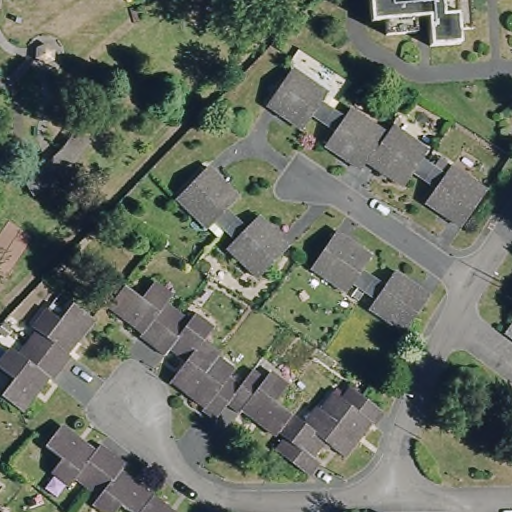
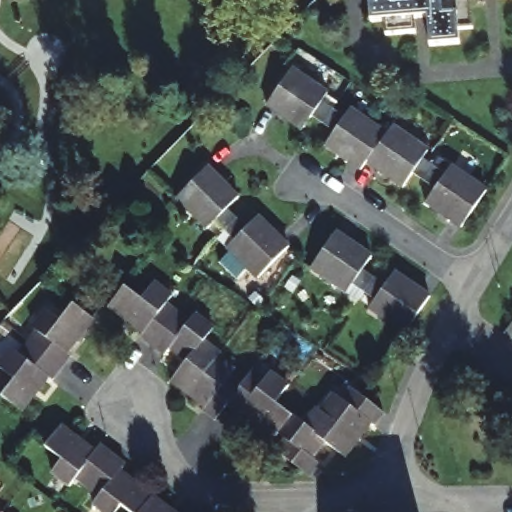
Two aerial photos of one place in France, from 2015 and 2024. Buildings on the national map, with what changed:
unchanged [(460,29),(461,44),(456,45),(430,47),(429,26),(428,19),(419,19),(415,20),(415,34),(385,36),(385,22),(371,23),(369,0),(470,0),(472,29),(460,29)]
unchanged [(327,125),(315,117),(305,131),(270,107),(295,69),(330,94),(324,104),(336,112),(327,125)]
unchanged [(336,112),(348,120),(355,111),(389,135),(365,172),(330,148),(340,133),(327,125),(336,112)]
unchanged [(429,182),(418,174),(407,189),(372,164),(397,127),(432,152),(425,162),(437,170),(429,182)]
unchanged [(228,231),(220,222),(212,230),(180,199),(211,167),(242,198),(230,210),(240,219),(228,231)]
unchanged [(437,170),(449,177),(455,168),(490,193),(466,229),(430,205),(440,189),(429,182),(437,170)]
unchanged [(240,219),(250,229),(261,217),(292,247),(262,278),(230,248),(238,240),(228,231),(240,219)]
unchanged [(367,292),(355,285),(349,293),(314,269),(339,233),(374,257),(365,272),(376,279),(367,292)]
unchanged [(376,279),(388,287),(397,273),(433,298),(409,333),(373,310),(378,301),(367,292),(376,279)]
unchanged [(156,347),(144,338),(150,331),(134,317),(130,322),(112,307),(129,287),(145,300),(159,283),(175,297),(167,307),(180,317),(156,347)]
unchanged [(32,345),(40,333),(34,327),(47,311),(57,317),(70,301),(94,319),(68,352),(75,357),(65,370),(32,345)]
unchanged [(497,325),(512,303),(512,336),(497,325)]
unchanged [(180,317),(192,326),(200,316),(217,329),(207,341),(224,354),(221,358),(208,375),(192,362),(175,349),(168,357),(156,347),(180,317)]
unchanged [(65,370),(56,382),(50,377),(35,395),(39,397),(27,413),(6,397),(18,382),(2,368),(16,351),(22,356),(32,345),(65,370)]
unchanged [(208,375),(221,358),(238,372),(232,378),(245,388),(232,406),(220,421),(207,412),(212,405),(196,392),(193,397),(175,382),(192,362),(208,375)]
unchanged [(245,388),(258,372),(270,382),(276,375),(293,388),(281,405),(297,417),(284,435),(282,437),(264,424),(267,421),(250,408),(245,415),(232,406),(245,388)]
unchanged [(344,426),(327,413),(341,396),(347,401),(357,387),(390,413),(380,427),(374,422),(361,438),(365,442),(351,458),(330,442),(344,426)]
unchanged [(297,417),(310,427),(323,411),(327,413),(344,426),(330,442),(317,460),(324,466),(315,477),(281,452),(290,440),(284,435),(297,417)]
unchanged [(88,492),(75,482),(70,488),(52,475),(62,462),(45,449),(60,427),(95,453),(101,447),(114,457),(88,492)]
unchanged [(126,466),(122,472),(155,497),(144,512),(129,512),(122,507),(119,512),(102,512),(95,507),(100,501),(88,492),(114,457),(126,466)]
unchanged [(155,497),(172,511),(172,512),(144,512),(155,497)]

